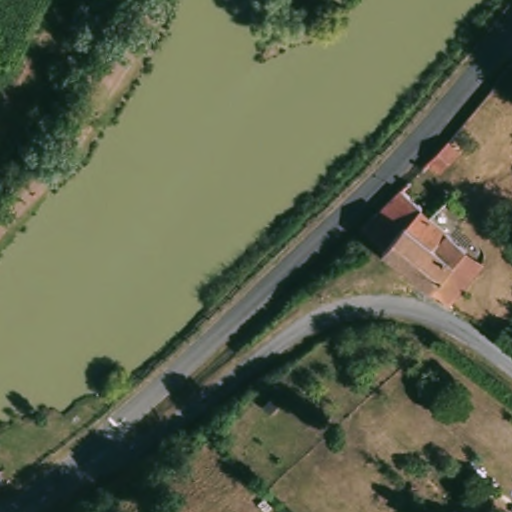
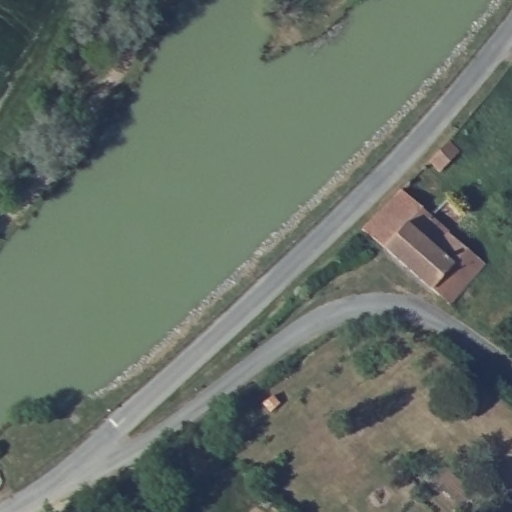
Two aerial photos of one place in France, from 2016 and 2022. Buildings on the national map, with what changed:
unchanged [(429,161),(449,141),(460,151),(439,173),(429,161)]
unchanged [(421,214),(420,216),(485,270),(450,312),(433,297),(361,234),(381,215),(400,195),(421,214)]

